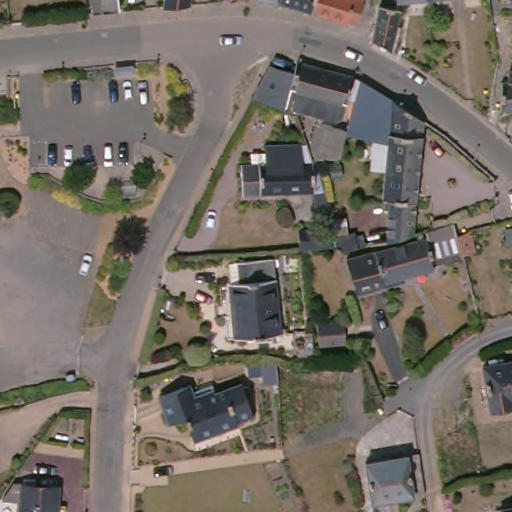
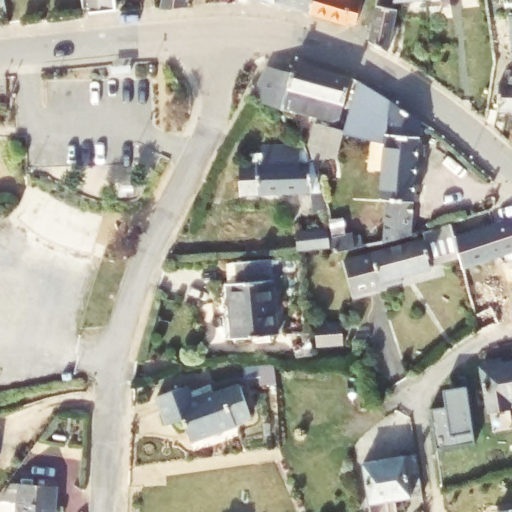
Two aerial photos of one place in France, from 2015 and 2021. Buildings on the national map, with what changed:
unchanged [(93,9),(92,0),(118,0),(118,6),(93,9)]
unchanged [(161,5),(163,0),(191,0),(191,3),(161,5)]
unchanged [(241,1),(241,0),(250,0),(249,3),(241,1)]
unchanged [(317,0),(312,15),(279,4),(265,0),(317,0)]
unchanged [(357,26),(349,24),(349,26),(312,15),(317,0),(362,0),(366,1),(364,6),(357,26)]
unchanged [(424,0),(394,5),(393,5),(388,53),(370,41),(378,0),(424,0)]
unchanged [(512,20),(512,51),(510,20),(512,20)]
unchanged [(293,80),(303,82),(306,70),(352,82),(344,112),(308,104),(304,120),(296,118),(284,116),(261,109),(279,76),(293,80)]
unchanged [(512,75),(512,90),(504,90),(504,76),(512,75)]
unchanged [(394,108),(421,126),(413,241),(405,243),(386,249),(370,252),(369,221),(387,221),(387,205),(381,205),(383,149),(344,141),(339,164),(318,165),(314,149),(319,131),(346,136),(359,84),(394,108)]
unchanged [(499,90),(504,90),(512,90),(512,117),(496,116),(499,90)]
unchanged [(312,200),(241,200),(241,170),(256,170),(256,161),(263,161),(263,153),(299,153),(299,161),(306,163),(306,169),(312,169),(313,169),(312,200)]
unchanged [(311,220),(312,200),(324,200),(328,221),(311,220)]
unchanged [(299,241),(331,239),(329,231),(341,229),(344,243),(353,242),(353,245),(362,244),(364,252),(348,255),(334,257),(334,255),(300,258),(299,241)]
unchanged [(455,240),(469,237),(473,259),(461,261),(461,263),(432,271),(433,274),(399,282),(401,288),(402,292),(351,304),(351,301),(342,266),(425,245),(424,238),(453,229),(455,240)]
unchanged [(512,229),(512,259),(509,230),(512,229)]
unchanged [(489,231),(491,242),(479,245),(476,235),(489,231)]
unchanged [(273,340),(232,341),(231,287),(236,287),(236,266),(271,265),(273,340)]
unchanged [(346,350),(321,352),(319,330),(344,328),(346,350)]
unchanged [(487,373),(512,369),(512,413),(494,416),(487,373)]
unchanged [(273,392),(258,392),(257,373),(272,372),(273,392)]
new [(467,387),(475,432),(476,443),(439,450),(432,410),(448,410),(445,390),(467,387)]
unchanged [(251,425),(236,429),(238,432),(191,445),(184,424),(168,430),(159,399),(190,391),(193,397),(214,392),(216,400),(242,393),(251,425)]
demolished [(474,430),(451,434),(447,404),(469,402),(474,430)]
unchanged [(360,512),(354,473),(408,465),(413,505),(360,512)]
unchanged [(58,512),(21,512),(21,505),(8,505),(19,487),(25,487),(26,485),(59,487),(58,512)]

